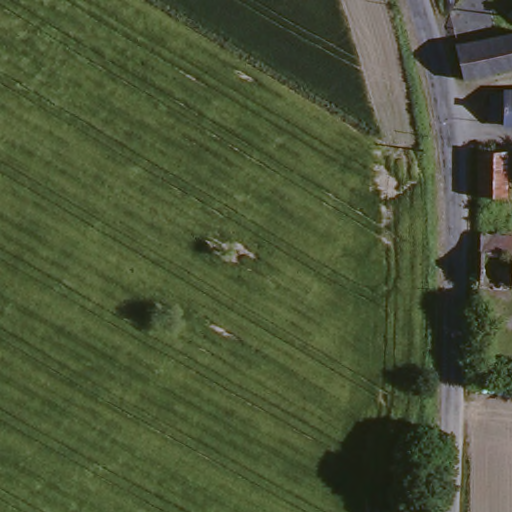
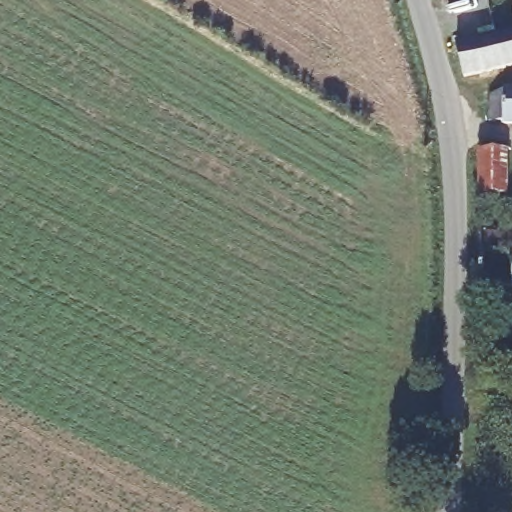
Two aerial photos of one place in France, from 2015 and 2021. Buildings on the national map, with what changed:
unchanged [(512,65),(508,66),(471,74),(464,41),(512,30),(512,65)]
unchanged [(512,187),(483,187),(484,144),(512,144),(512,187)]
unchanged [(509,233),(512,233),(512,286),(476,283),(479,232),(509,233)]

